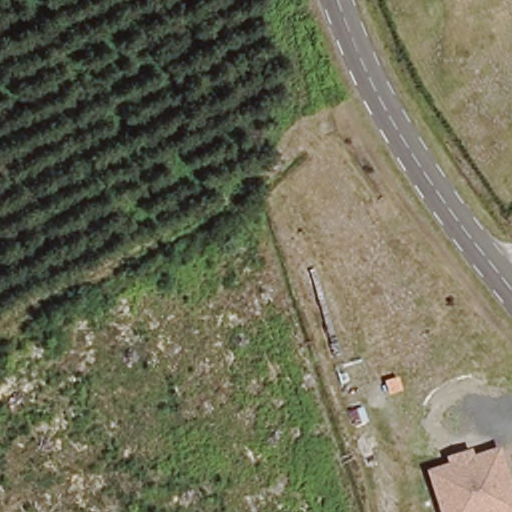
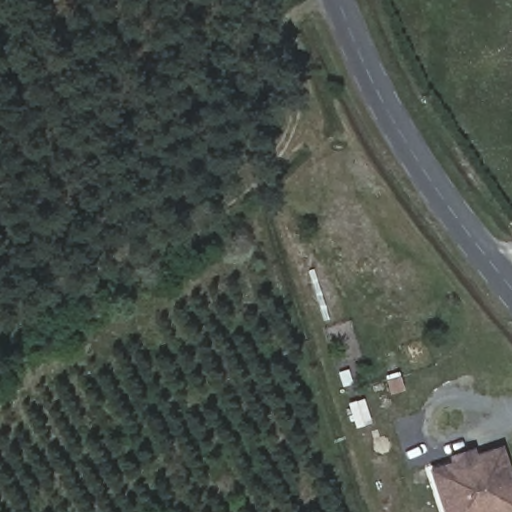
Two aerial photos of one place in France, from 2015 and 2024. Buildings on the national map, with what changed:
unchanged [(512,512),(441,512),(428,472),(448,464),(447,457),(471,449),(474,455),(503,447),(512,478),(512,512)]

